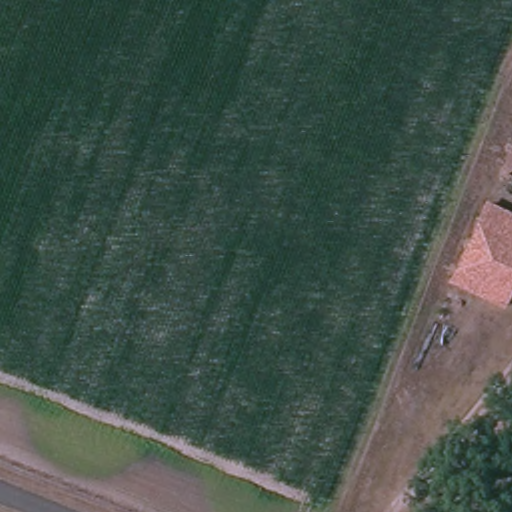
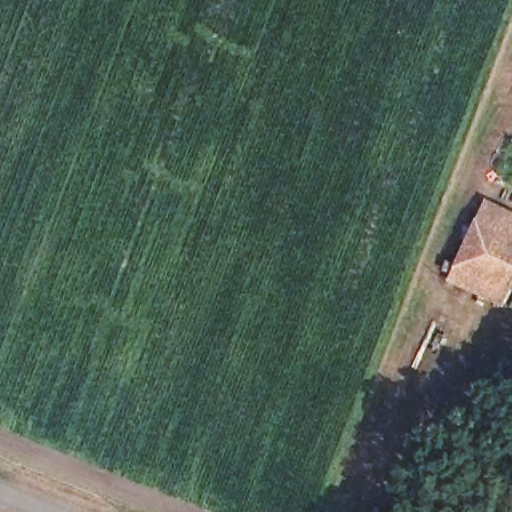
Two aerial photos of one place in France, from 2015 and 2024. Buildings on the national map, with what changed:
unchanged [(512,145),(512,180),(498,173),(511,145),(512,145)]
unchanged [(468,242),(476,224),(486,226),(495,209),(512,217),(512,284),(508,291),(480,279),(457,269),(468,242)]

